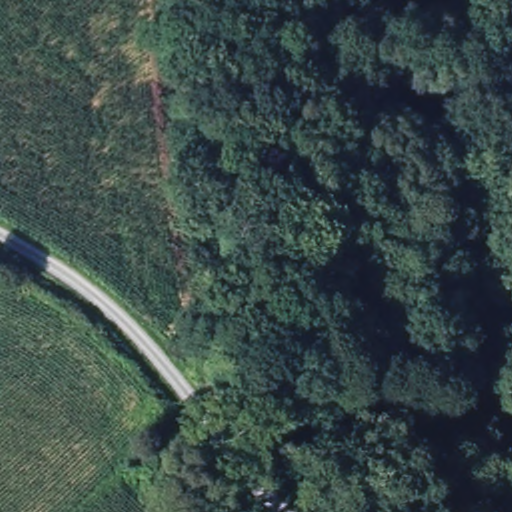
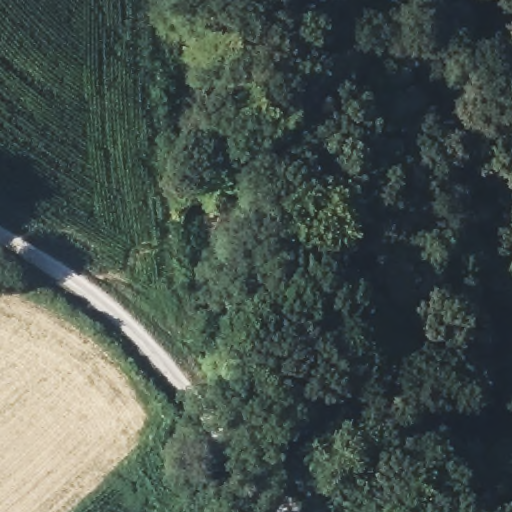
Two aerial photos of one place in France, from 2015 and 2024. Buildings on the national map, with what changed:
unchanged [(226,512),(245,495),(260,512),(226,512)]

